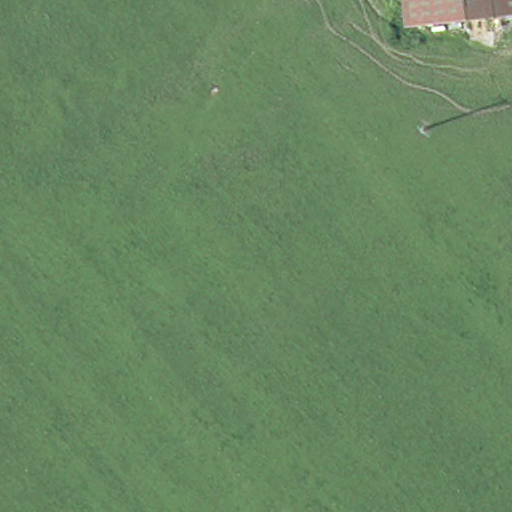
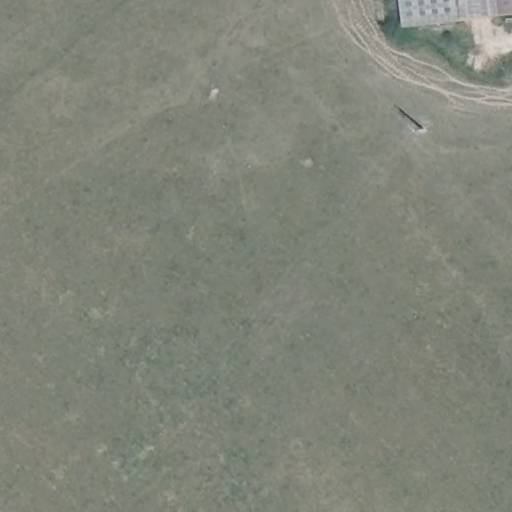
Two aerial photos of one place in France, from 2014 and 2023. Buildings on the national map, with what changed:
unchanged [(512,13),(403,25),(401,0),(512,0),(512,13)]

